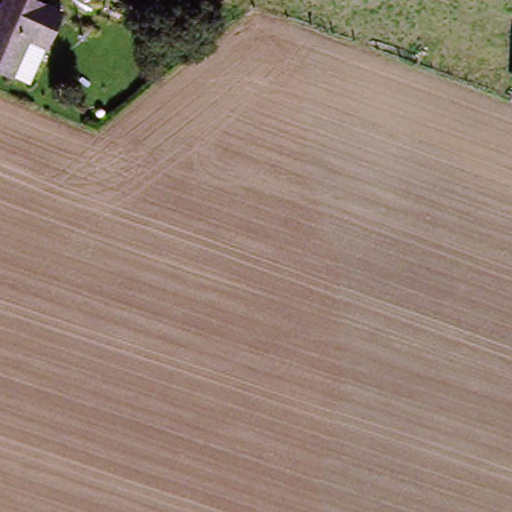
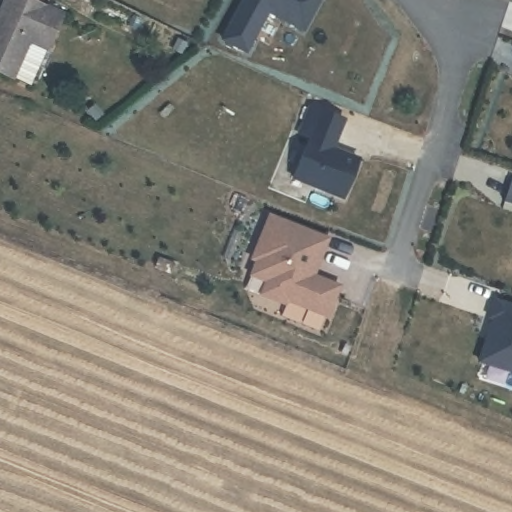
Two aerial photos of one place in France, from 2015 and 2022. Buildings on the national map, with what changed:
unchanged [(26,38),(10,75),(0,71),(0,2),(1,0),(32,0),(59,11),(45,46),(26,38)]
new [(240,0),(318,0),(318,1),(299,31),(265,10),(240,49),(218,35),(240,0)]
new [(308,137),(304,135),(314,105),(349,118),(338,147),(365,157),(351,196),(295,176),(308,137)]
new [(512,189),(512,202),(509,200),(512,189)]
new [(332,237),(317,273),(342,285),(329,317),(287,302),(286,305),(244,291),(254,261),(250,259),(269,215),(332,237)]
new [(492,314),(497,297),(512,302),(512,368),(482,358),(495,315),(492,314)]

